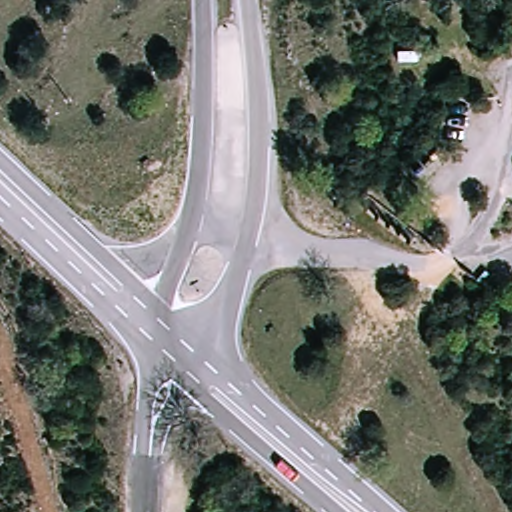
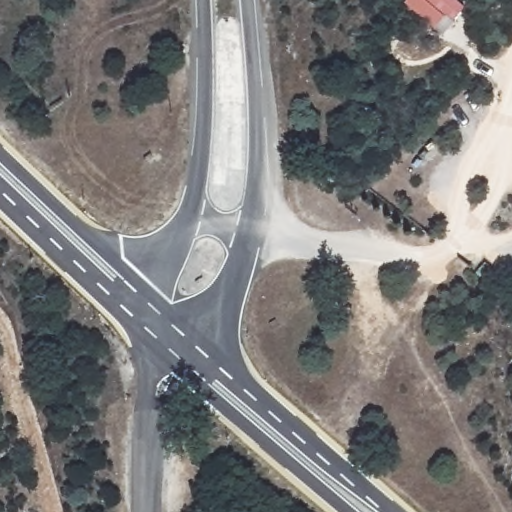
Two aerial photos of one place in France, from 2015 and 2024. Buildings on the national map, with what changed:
new [(406,0),(457,0),(465,7),(442,35),(405,2),(406,0)]

